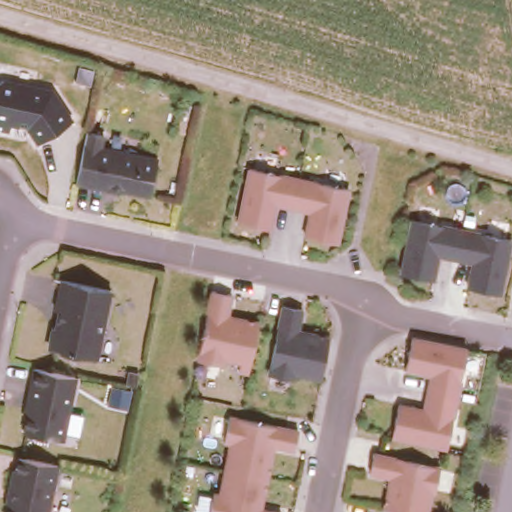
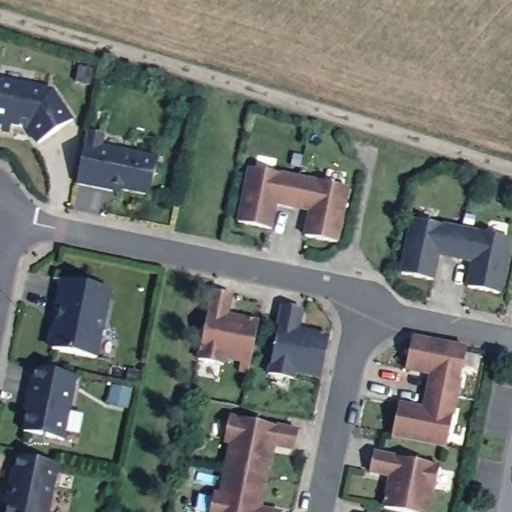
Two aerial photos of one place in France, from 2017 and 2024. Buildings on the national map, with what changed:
unchanged [(27,123),(19,127),(0,124),(0,79),(54,88),(76,117),(39,140),(27,123)]
unchanged [(159,154),(151,196),(80,182),(88,142),(159,154)]
unchanged [(351,189),(339,244),(302,237),(307,213),(277,207),(272,230),(235,222),(247,168),(351,189)]
unchanged [(502,295),(465,287),(470,264),(438,258),(434,281),(398,273),(410,220),(512,240),(512,245),(502,295)]
unchanged [(62,282),(113,290),(107,327),(103,327),(96,356),(49,346),(62,282)]
unchanged [(254,363),(225,358),(215,346),(200,356),(211,289),(241,292),(237,316),(260,318),(254,363)]
unchanged [(283,305),(307,308),(303,332),(333,337),(326,377),(296,375),(286,360),(271,370),(283,305)]
unchanged [(468,347),(448,451),(392,438),(401,401),(422,406),(428,376),(405,371),(412,336),(468,347)]
unchanged [(22,429),(34,367),(79,376),(66,438),(22,429)]
unchanged [(213,494),(220,495),(231,444),(226,443),(231,415),(303,427),(297,453),(277,449),(266,507),(285,511),(284,512),(210,512),(213,494)]
unchanged [(439,465),(428,512),(401,512),(382,508),(387,480),(368,476),(374,452),(439,465)]
unchanged [(59,465),(49,512),(6,512),(16,456),(59,465)]

